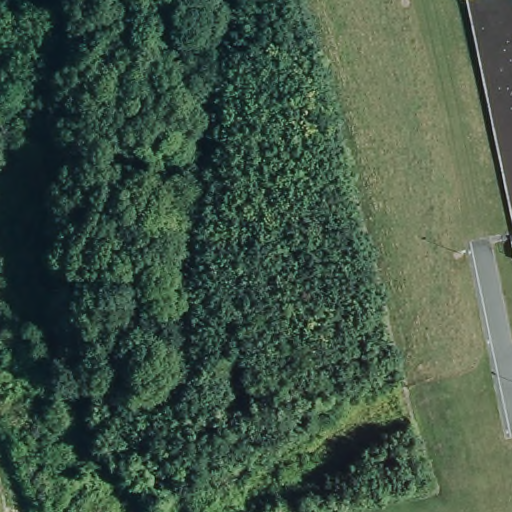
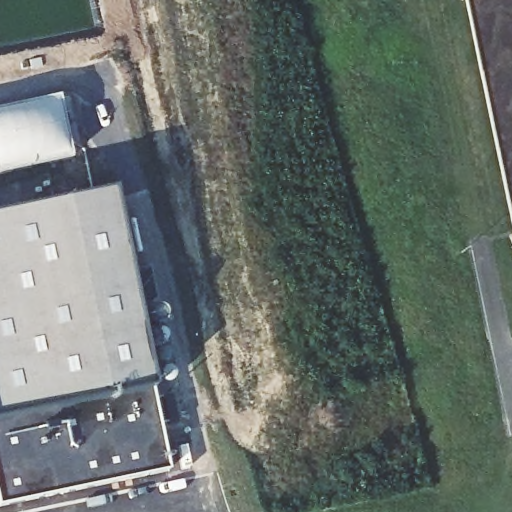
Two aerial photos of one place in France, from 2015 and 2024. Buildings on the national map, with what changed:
new [(147,392),(163,475),(0,507),(0,218),(105,199),(147,392)]

